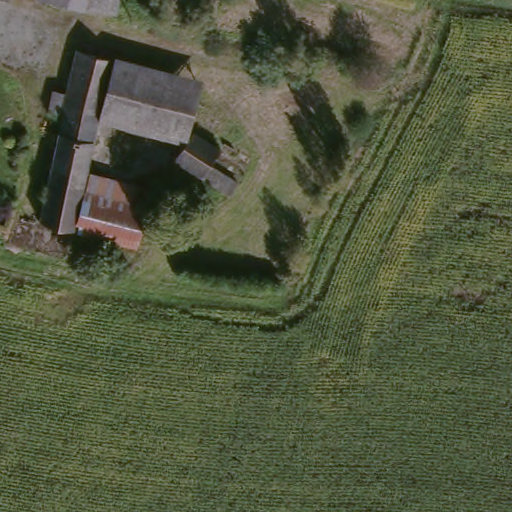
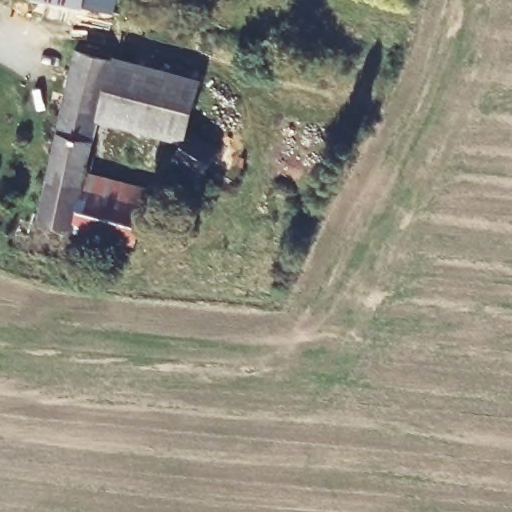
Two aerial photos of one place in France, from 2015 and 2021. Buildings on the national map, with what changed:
unchanged [(45,0),(91,0),(89,8),(45,0)]
unchanged [(118,13),(89,8),(91,0),(121,0),(118,13)]
unchanged [(61,115),(46,112),(52,92),(67,95),(76,49),(113,59),(93,140),(71,226),(61,224),(37,218),(61,115)]
unchanged [(107,111),(125,60),(202,82),(194,113),(191,118),(187,128),(179,143),(107,111)]
unchanged [(224,197),(198,179),(169,164),(179,143),(187,128),(219,147),(207,166),(233,182),(224,197)]
unchanged [(90,180),(149,199),(134,242),(76,228),(90,180)]

